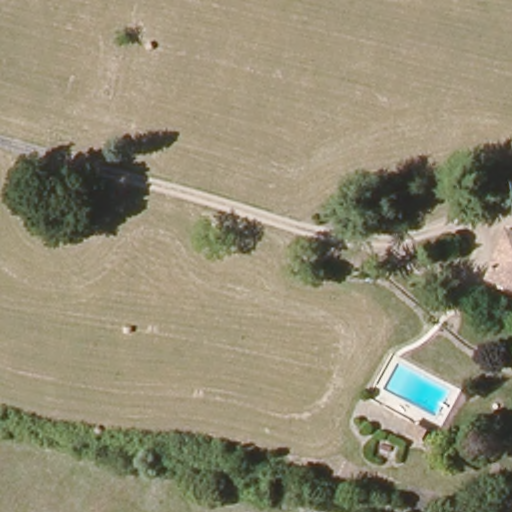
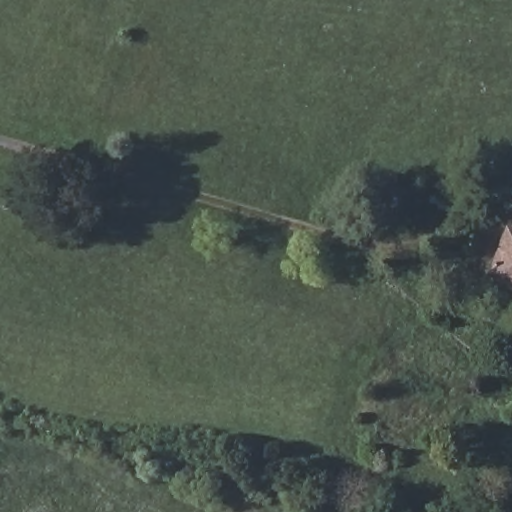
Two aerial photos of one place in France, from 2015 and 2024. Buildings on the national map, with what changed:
unchanged [(496,285),(512,251),(512,291),(496,285)]
unchanged [(417,437),(403,426),(410,418),(425,427),(417,437)]

